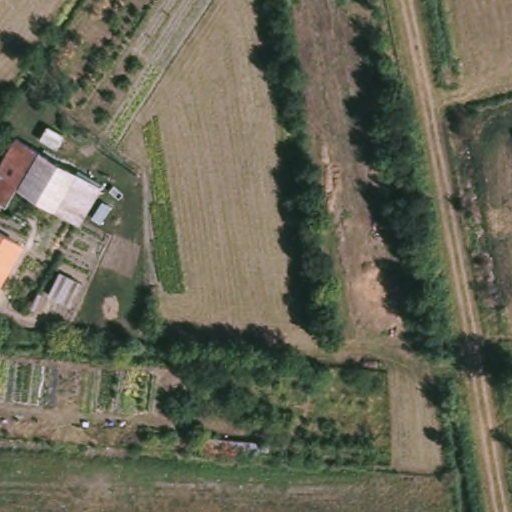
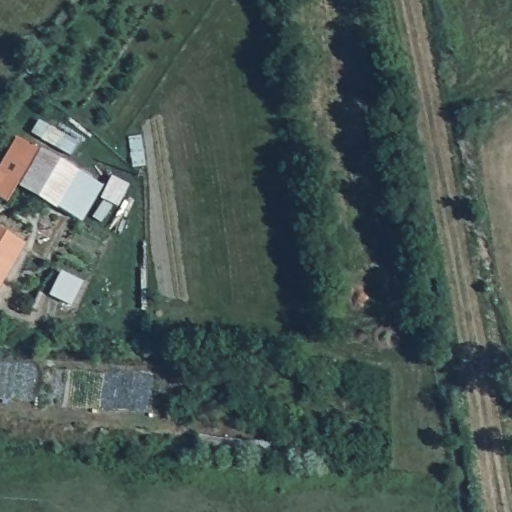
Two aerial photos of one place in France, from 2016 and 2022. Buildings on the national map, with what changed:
unchanged [(0,205),(0,163),(14,142),(39,157),(20,189),(6,208),(0,205)]
unchanged [(75,227),(62,218),(20,189),(39,157),(84,186),(95,193),(75,227)]
unchanged [(0,283),(0,242),(19,254),(0,283)]
unchanged [(60,261),(83,274),(70,297),(48,283),(60,261)]

